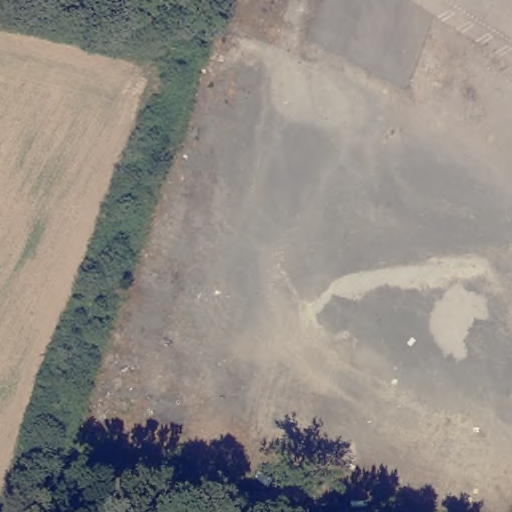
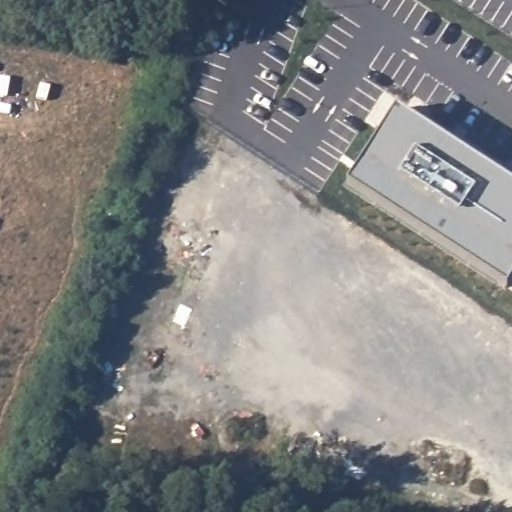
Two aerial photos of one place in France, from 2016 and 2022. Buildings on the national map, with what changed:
new [(394,108),(512,181),(512,280),(506,290),(345,186),(394,108)]

